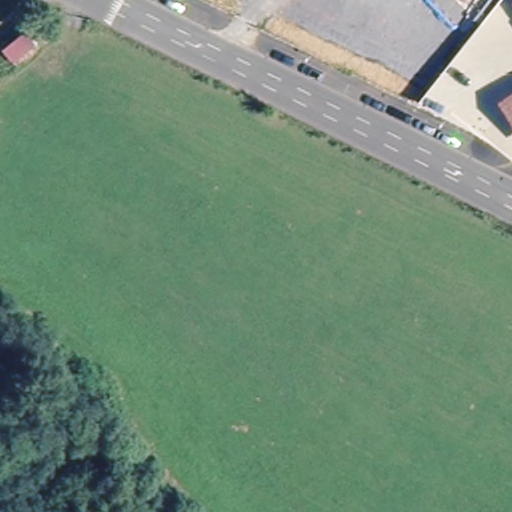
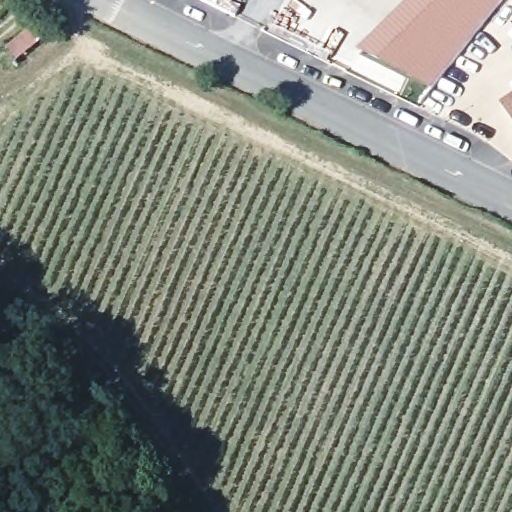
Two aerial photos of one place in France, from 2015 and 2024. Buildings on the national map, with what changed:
demolished [(315,17),(325,0),(348,0),(402,31),(386,59),(315,17)]
new [(425,86),(389,70),(364,45),(409,0),(498,0),(425,86)]
unchanged [(509,103),(512,101),(512,107),(509,103)]

